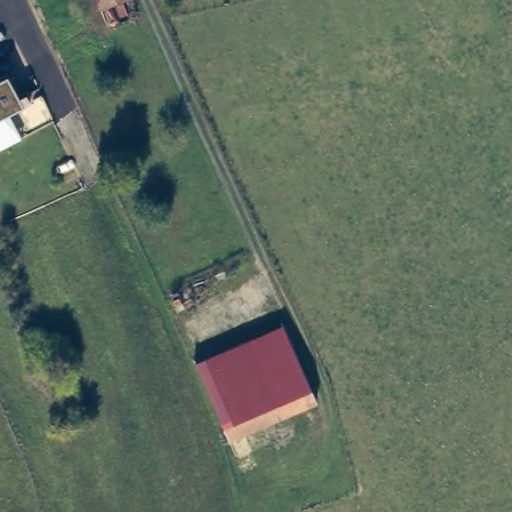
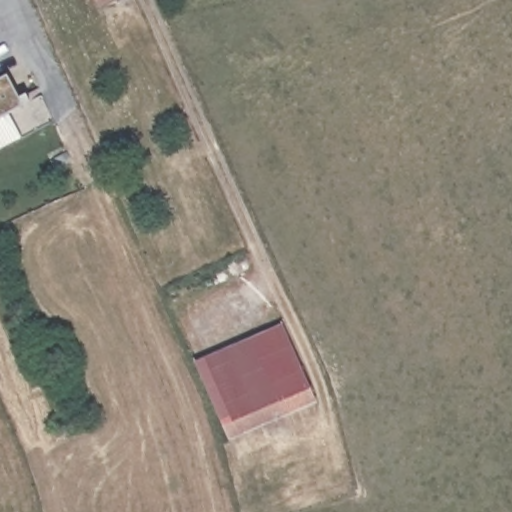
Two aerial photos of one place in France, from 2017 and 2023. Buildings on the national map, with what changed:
unchanged [(99,9),(95,0),(121,0),(99,9)]
unchanged [(192,354),(280,317),(317,404),(230,436),(220,418),(192,354)]

